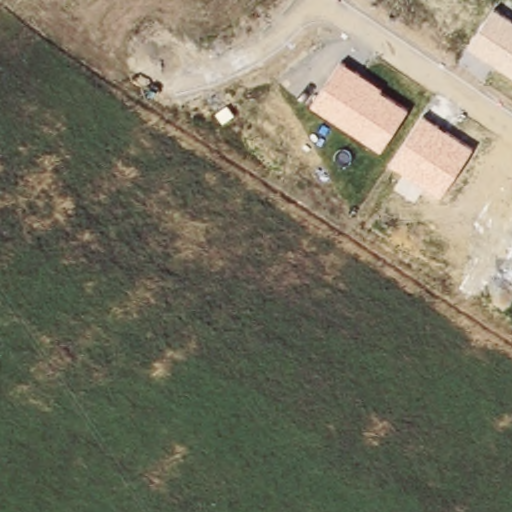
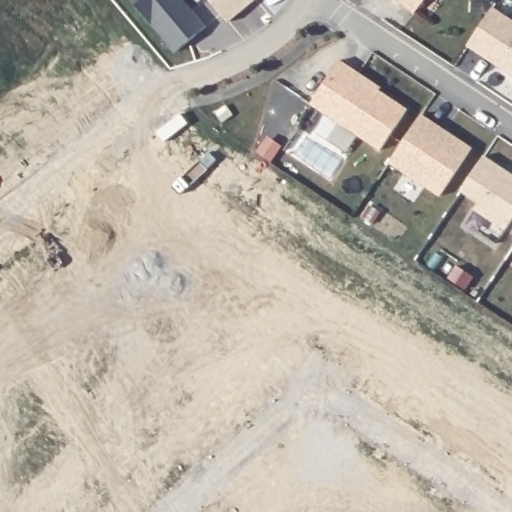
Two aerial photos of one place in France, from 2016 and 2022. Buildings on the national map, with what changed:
new [(177,54),(132,0),(184,0),(207,29),(177,54)]
new [(210,0),(258,0),(230,24),(210,0)]
new [(398,0),(427,0),(415,15),(398,0)]
unchanged [(512,20),(512,73),(469,46),(493,8),(512,20)]
unchanged [(313,103),(340,60),(383,87),(381,91),(408,109),(381,150),(313,103)]
unchanged [(391,162),(423,114),(471,148),(440,196),(391,162)]
new [(512,175),(512,223),(506,232),(476,211),(480,205),(462,193),(485,158),(512,175)]

